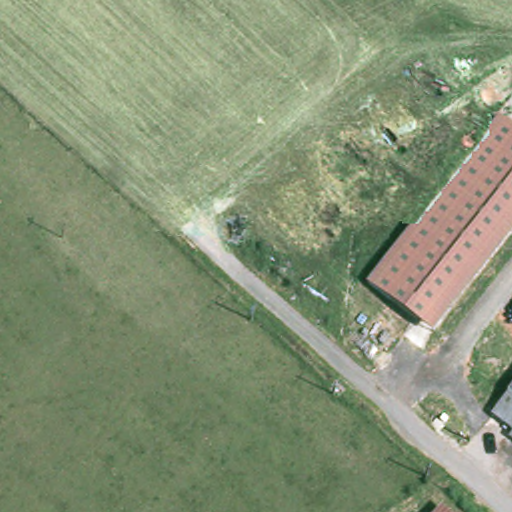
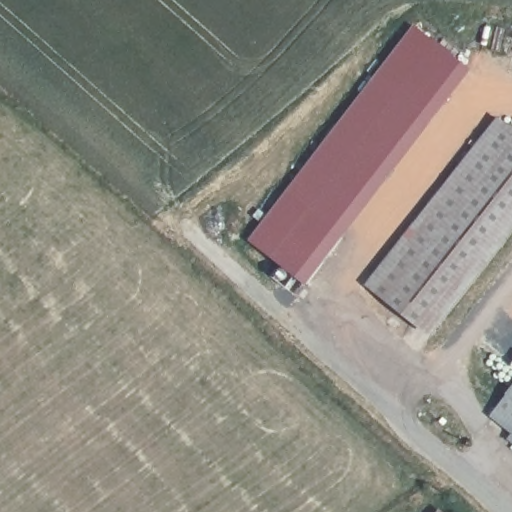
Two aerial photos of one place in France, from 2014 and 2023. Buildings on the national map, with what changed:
new [(307,284),(249,240),(415,25),(473,68),(307,284)]
unchanged [(497,115),(512,127),(512,231),(430,335),(366,283),(497,115)]
unchanged [(512,390),(512,432),(492,415),(512,390)]
unchanged [(512,439),(512,444),(510,442),(512,439)]
unchanged [(449,512),(437,512),(444,505),(449,512)]

